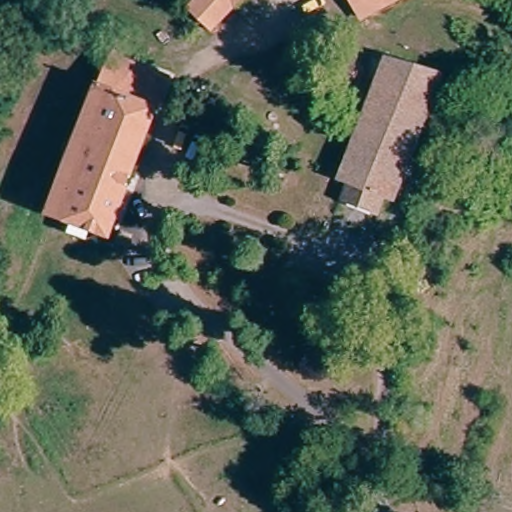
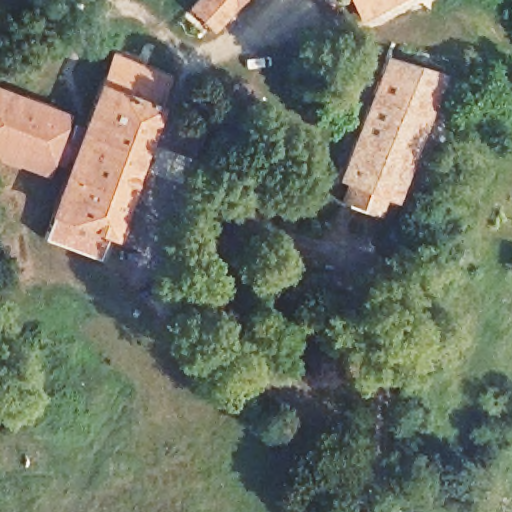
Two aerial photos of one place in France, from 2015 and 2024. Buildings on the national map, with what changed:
unchanged [(246,0),(217,31),(195,10),(204,0),(246,0)]
unchanged [(353,0),(388,0),(361,15),(353,0)]
unchanged [(153,107),(105,235),(49,212),(110,56),(165,80),(153,107)]
unchanged [(447,80),(434,121),(420,116),(390,199),(382,196),(375,215),(345,205),(351,186),(342,183),(360,127),(347,122),(355,99),(360,85),(370,57),(447,80)]
new [(0,88),(73,116),(65,137),(76,142),(65,170),(54,165),(49,176),(0,158),(0,88)]

